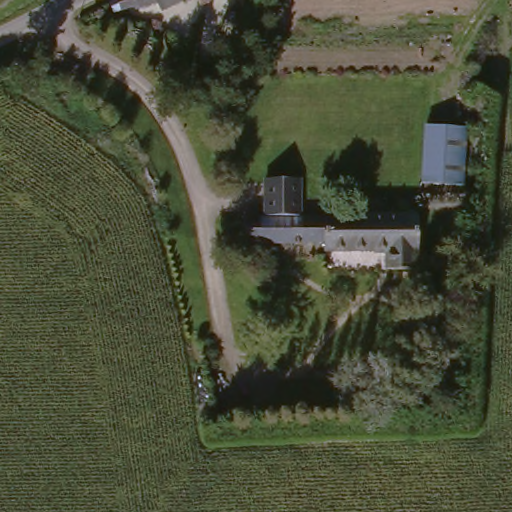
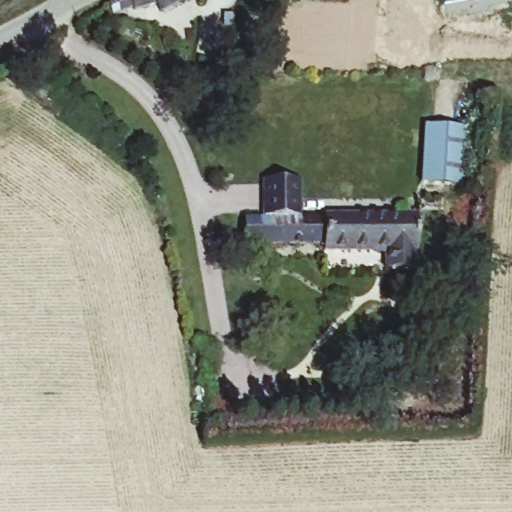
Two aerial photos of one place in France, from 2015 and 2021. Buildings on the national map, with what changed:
unchanged [(152,3),(140,8),(138,3),(124,9),(118,0),(179,0),(157,10),(152,3)]
unchanged [(470,130),(468,194),(423,192),(421,125),(470,130)]
unchanged [(265,208),(263,174),(298,174),(299,209),(426,207),(426,238),(422,238),(421,258),(400,260),(398,241),(338,241),(336,235),(244,237),(243,208),(265,208)]

